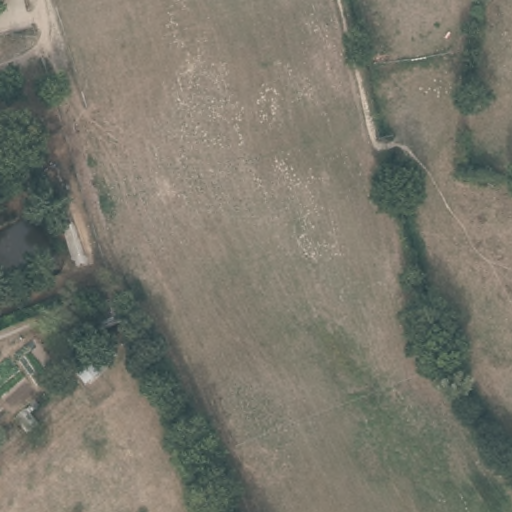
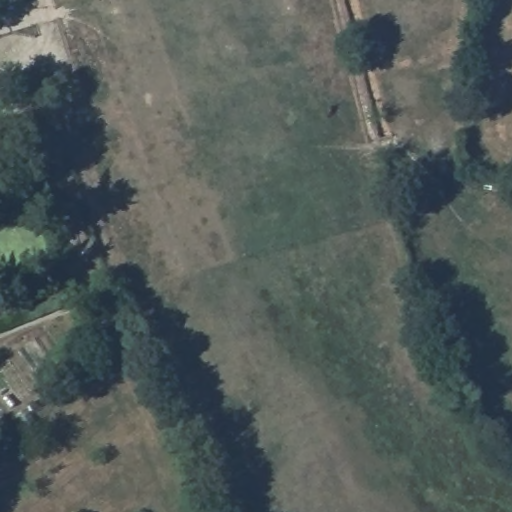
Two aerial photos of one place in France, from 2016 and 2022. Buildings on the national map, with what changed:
unchanged [(95,335),(81,300),(105,293),(119,328),(95,335)]

